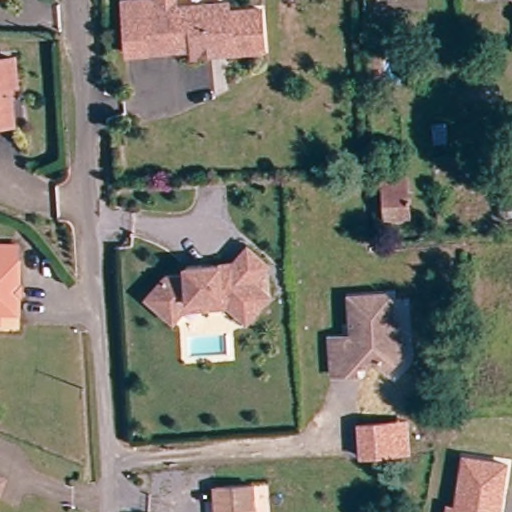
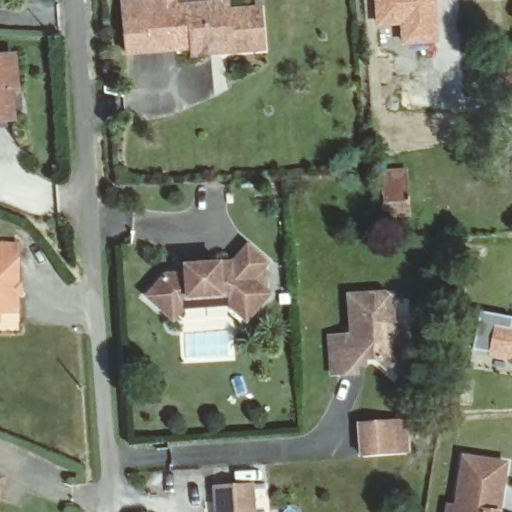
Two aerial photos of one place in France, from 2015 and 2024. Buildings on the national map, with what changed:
unchanged [(143,50),(124,50),(122,4),(143,4),(150,4),(150,0),(174,0),(174,6),(222,5),(222,13),(257,12),(257,57),(225,58),(189,59),(189,48),(143,50)]
new [(439,45),(400,47),(398,27),(375,29),(373,0),(436,0),(439,45)]
unchanged [(9,95),(7,123),(0,123),(0,60),(16,60),(14,95),(9,95)]
unchanged [(406,168),(408,220),(384,220),(381,171),(406,168)]
unchanged [(189,310),(178,321),(172,316),(151,297),(171,276),(191,275),(190,266),(239,263),(254,247),(275,265),(260,281),(276,295),(252,322),(235,307),(234,306),(189,310)]
unchanged [(18,280),(23,280),(23,299),(19,299),(18,313),(0,315),(0,248),(19,249),(18,280)]
unchanged [(395,362),(386,370),(368,357),(355,357),(355,376),(331,376),(330,341),(354,341),(351,297),(376,296),(391,310),(391,334),(395,334),(395,362)]
new [(510,317),(508,328),(512,329),(512,362),(508,361),(509,357),(486,353),(486,352),(470,349),(478,311),(510,317)]
unchanged [(359,460),(357,424),(408,420),(410,453),(359,460)]
unchanged [(454,505),(462,455),(508,463),(502,512),(445,512),(446,504),(454,505)]
unchanged [(258,512),(219,512),(215,488),(255,485),(258,512)]

